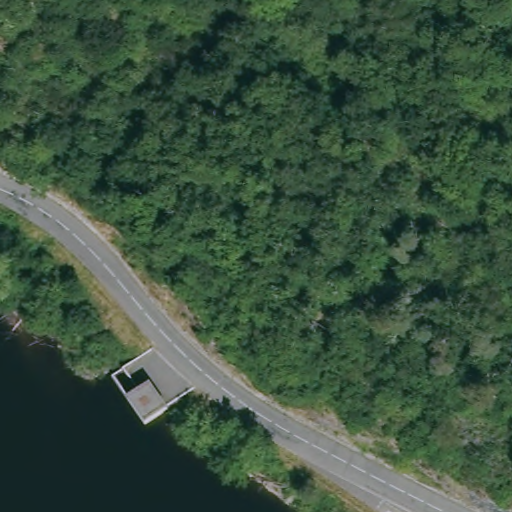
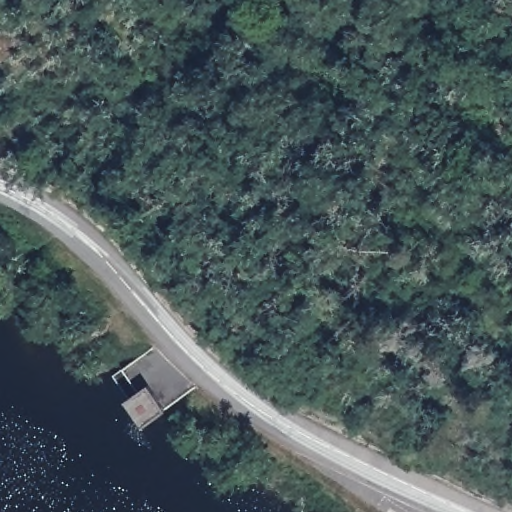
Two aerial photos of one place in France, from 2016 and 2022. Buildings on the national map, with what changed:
unchanged [(137,420),(120,394),(143,381),(158,405),(137,420)]

